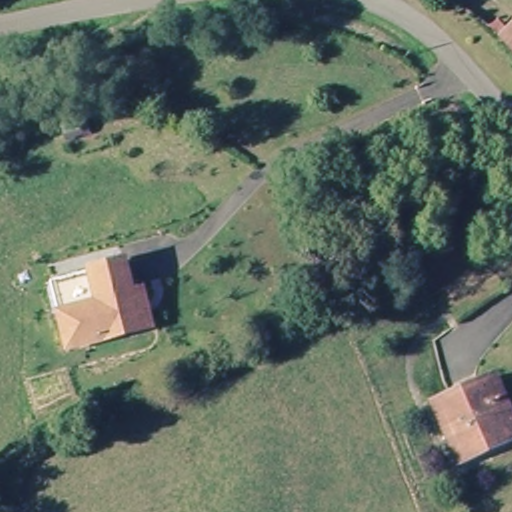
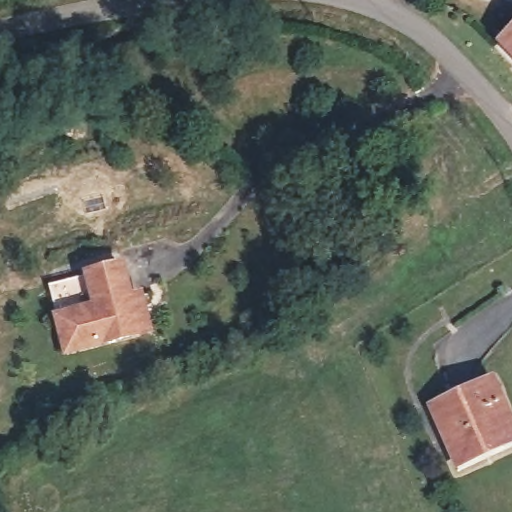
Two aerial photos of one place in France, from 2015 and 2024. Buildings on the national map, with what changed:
unchanged [(498,42),(512,30),(512,57),(498,42)]
unchanged [(66,350),(59,312),(100,304),(91,269),(132,262),(139,289),(152,289),(160,332),(66,350)]
unchanged [(456,468),(432,406),(497,381),(512,422),(512,444),(456,468)]

